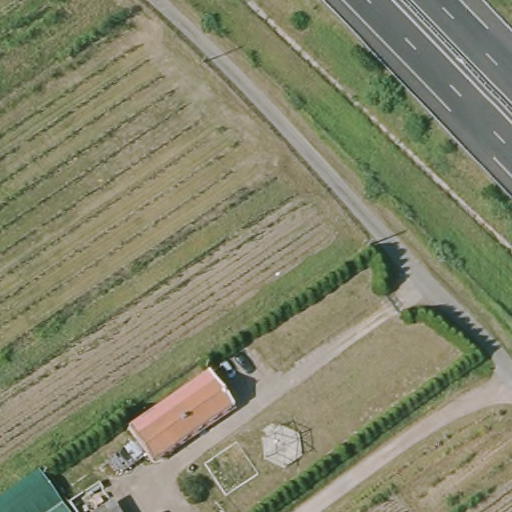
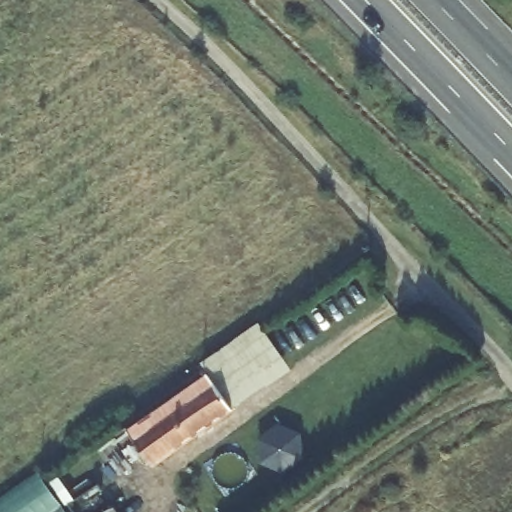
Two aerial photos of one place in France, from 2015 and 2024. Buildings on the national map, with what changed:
new [(208,379),(199,361),(259,321),(291,368),(230,410),(208,379)]
unchanged [(208,379),(232,413),(154,468),(129,434),(208,379)]
new [(259,436),(279,422),(303,432),(304,457),(284,472),(261,462),(259,436)]
unchanged [(0,495),(37,471),(65,512),(0,512),(0,495)]
new [(119,512),(96,512),(113,502),(119,512)]

